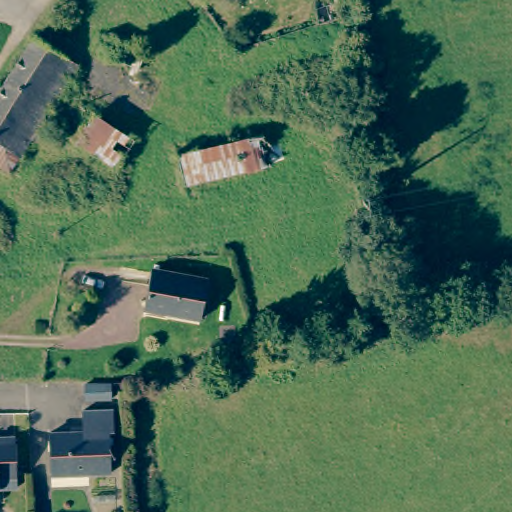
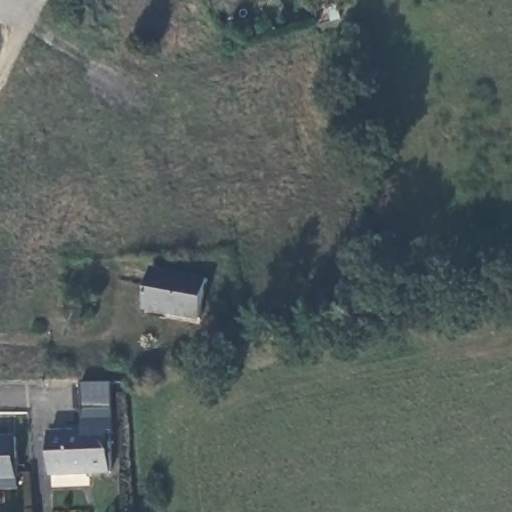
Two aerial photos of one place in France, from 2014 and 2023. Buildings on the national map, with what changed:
demolished [(79,67),(62,94),(44,124),(11,176),(0,170),(0,97),(36,40),(79,67)]
demolished [(259,132),(265,147),(275,145),(281,162),(182,186),(173,154),(259,132)]
unchanged [(209,280),(201,320),(145,309),(152,270),(209,280)]
unchanged [(113,390),(112,393),(112,405),(87,405),(87,401),(88,390),(113,390)]
unchanged [(112,410),(114,432),(108,432),(110,475),(52,476),(51,434),(85,433),(84,411),(112,410)]
unchanged [(12,435),(13,477),(0,478),(0,436),(12,435)]

